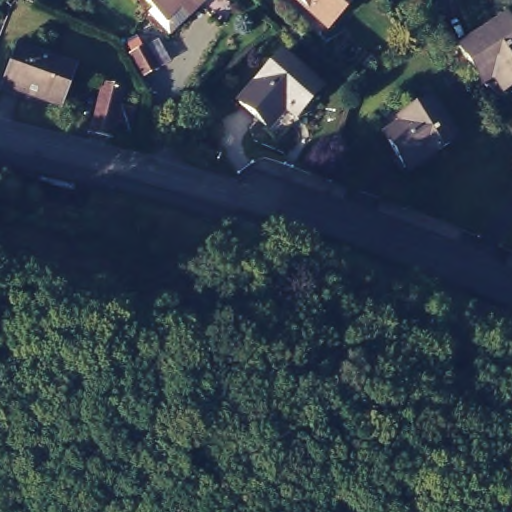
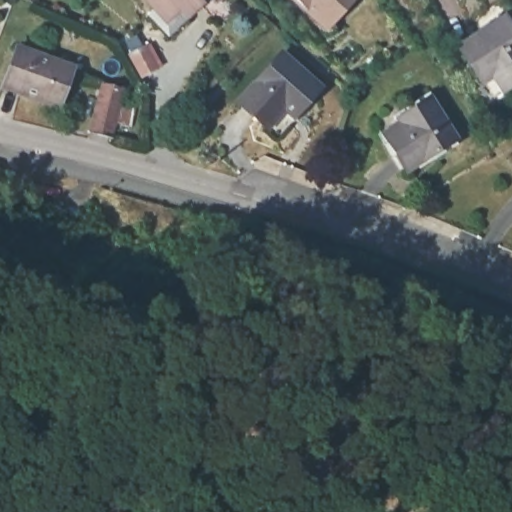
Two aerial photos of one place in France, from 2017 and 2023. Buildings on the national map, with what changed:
unchanged [(148,5),(153,0),(194,0),(188,6),(166,25),(148,5)]
unchanged [(326,28),(296,0),(352,0),(326,28)]
unchanged [(458,46),(475,36),(478,40),(508,20),(512,27),(512,86),(503,91),(493,75),(482,82),(458,46)]
unchanged [(3,81),(17,42),(73,61),(58,100),(3,81)]
unchanged [(133,54),(146,46),(158,69),(146,76),(133,54)]
unchanged [(288,104),(272,123),(243,97),(288,48),(326,82),(307,103),(298,113),(288,104)]
unchanged [(90,132),(103,85),(123,89),(119,104),(133,108),(130,124),(114,121),(110,137),(90,132)]
unchanged [(399,118),(431,98),(457,138),(407,169),(384,133),(401,123),(399,118)]
unchanged [(115,193),(151,201),(146,226),(111,218),(115,193)]

